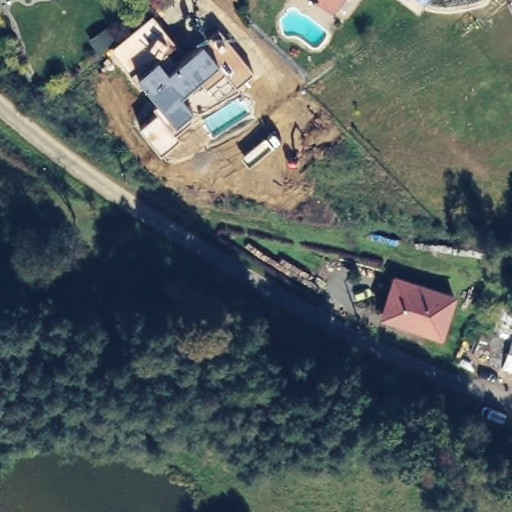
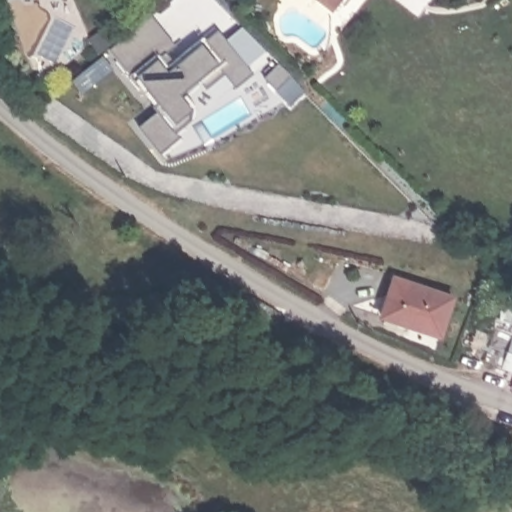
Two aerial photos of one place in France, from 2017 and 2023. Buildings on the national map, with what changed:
unchanged [(323,0),(341,0),(335,9),(323,0)]
unchanged [(235,85),(224,73),(206,86),(201,77),(181,92),(193,108),(194,115),(176,128),(181,135),(160,149),(140,123),(156,110),(152,103),(156,100),(136,73),(113,46),(153,14),(185,54),(203,41),(219,29),(252,71),(235,85)]
unchanged [(453,300),(436,340),(377,317),(394,277),(453,300)]
unchanged [(512,341),(512,378),(503,375),(512,341)]

